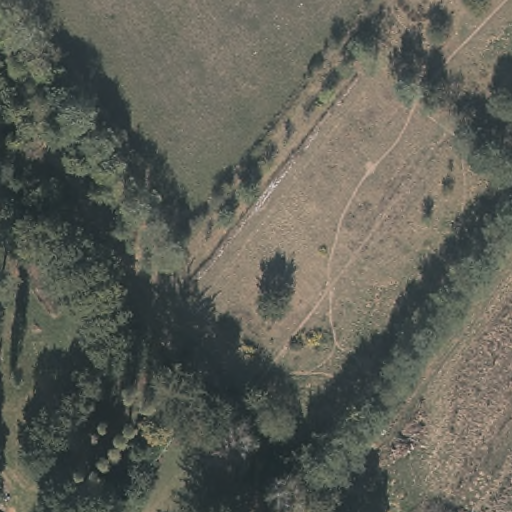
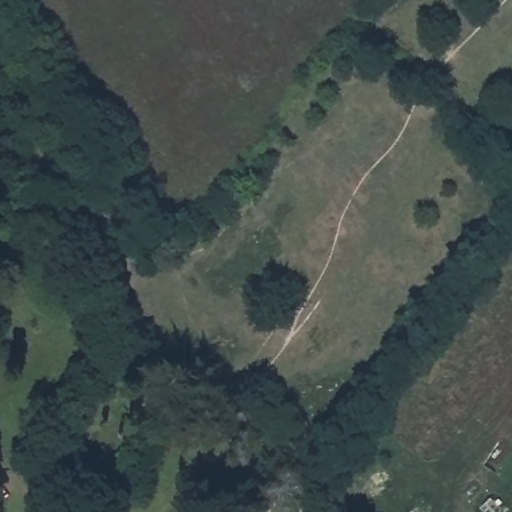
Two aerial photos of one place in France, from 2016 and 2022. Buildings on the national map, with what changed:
[]

